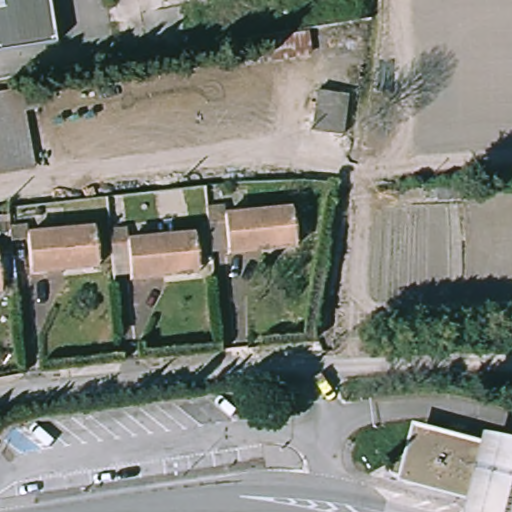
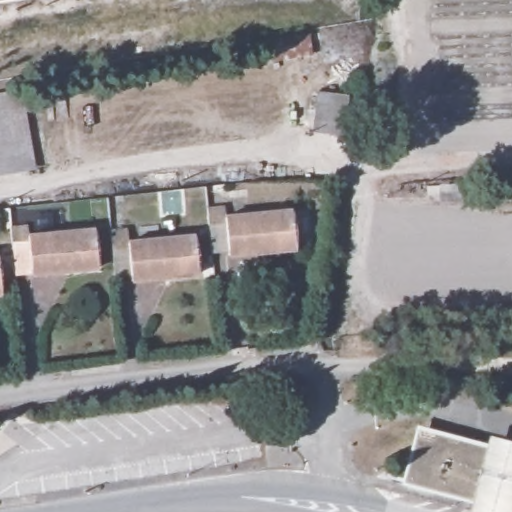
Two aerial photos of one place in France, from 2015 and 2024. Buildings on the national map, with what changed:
demolished [(62,52),(0,61),(0,0),(54,0),(62,52)]
unchanged [(252,47),(300,40),(303,62),(256,69),(252,47)]
unchanged [(312,129),(317,89),(347,92),(341,134),(312,129)]
unchanged [(20,95),(32,167),(0,172),(0,98),(20,95)]
unchanged [(241,254),(226,256),(222,213),(287,207),(290,242),(291,249),(241,254)]
unchanged [(45,273),(30,275),(25,233),(90,227),(94,262),(94,269),(45,273)]
unchanged [(146,276),(130,277),(127,235),(191,229),(195,264),(195,271),(146,276)]
unchanged [(421,490),(423,482),(402,477),(408,457),(415,430),(437,436),(459,442),(466,442),(476,443),(485,445),(496,447),(505,451),(512,454),(512,507),(471,496),(452,490),(421,490)]
unchanged [(496,447),(486,445),(485,445),(487,436),(512,442),(512,454),(505,451),(496,447)]
unchanged [(512,507),(512,512),(466,512),(471,496),(512,507)]

